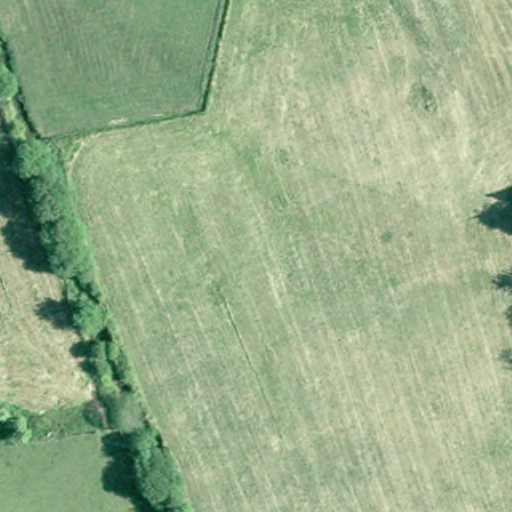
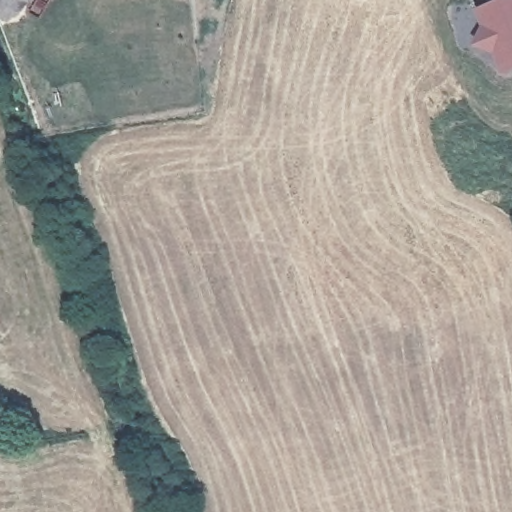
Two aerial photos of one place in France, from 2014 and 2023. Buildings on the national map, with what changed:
new [(498,0),(512,0),(512,70),(503,73),(495,51),(477,44),(485,24),(478,8),(498,0)]

